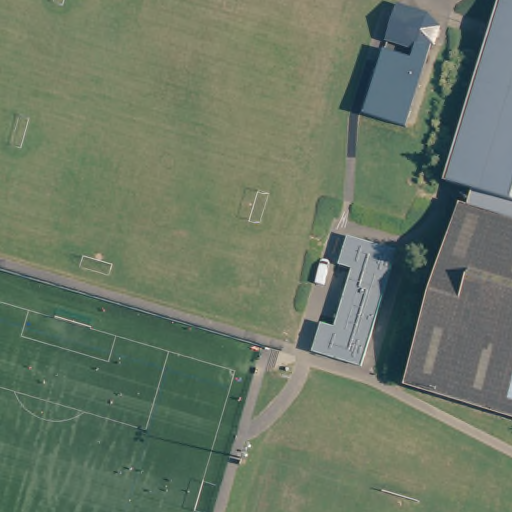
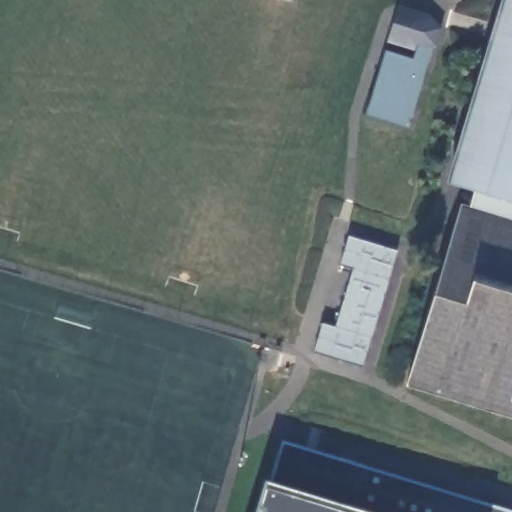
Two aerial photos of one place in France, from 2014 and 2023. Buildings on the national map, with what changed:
unchanged [(462,204),(468,206),(476,183),(455,176),(508,0),(512,0),(512,405),(410,376),(462,204)]
unchanged [(410,127),(368,114),(386,51),(413,59),(417,50),(389,42),(400,7),(430,14),(442,29),(436,49),(433,50),(410,127)]
unchanged [(395,246),(360,362),(312,348),(321,319),(333,323),(351,264),(338,260),(347,231),(395,246)]
new [(270,482),(282,442),(512,511),(512,512),(253,512),(263,480),(270,482)]

